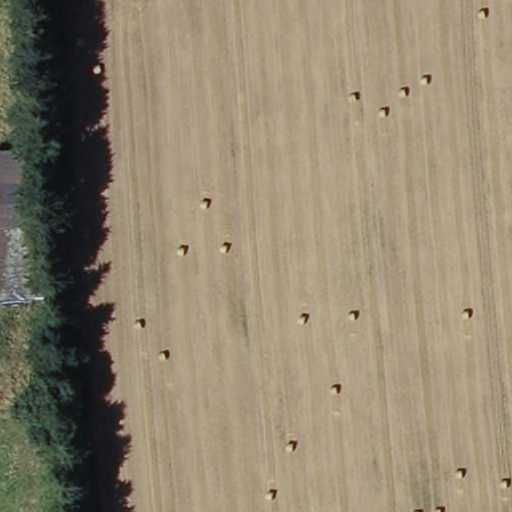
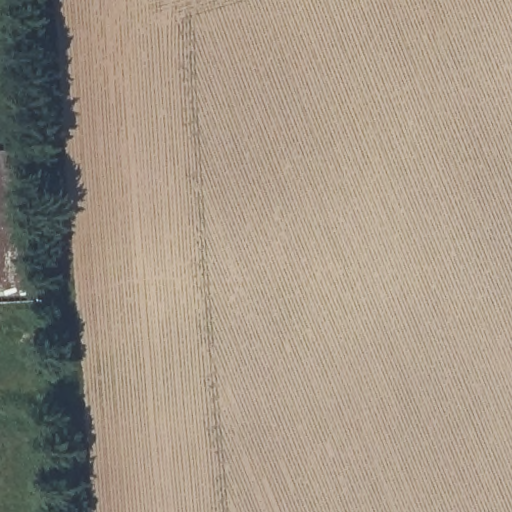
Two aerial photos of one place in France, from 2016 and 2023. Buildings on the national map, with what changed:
unchanged [(39,299),(0,301),(0,154),(31,152),(39,299)]

